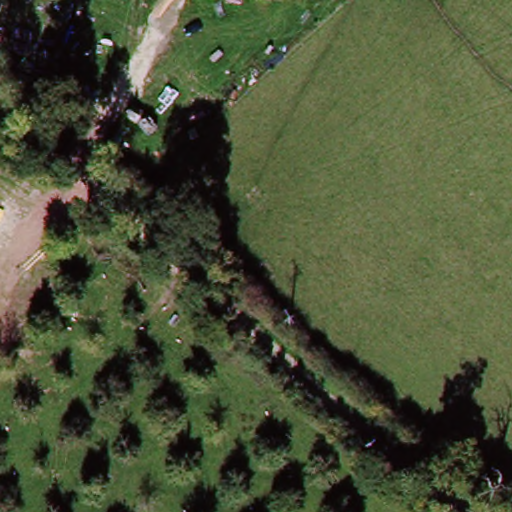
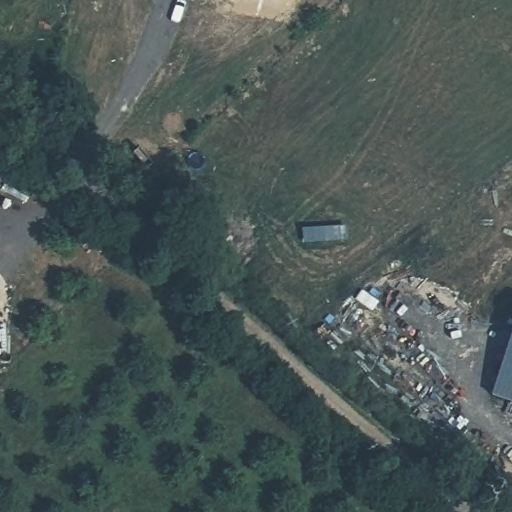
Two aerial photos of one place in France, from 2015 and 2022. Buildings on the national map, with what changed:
new [(489,397),(512,335),(512,405),(489,397)]

